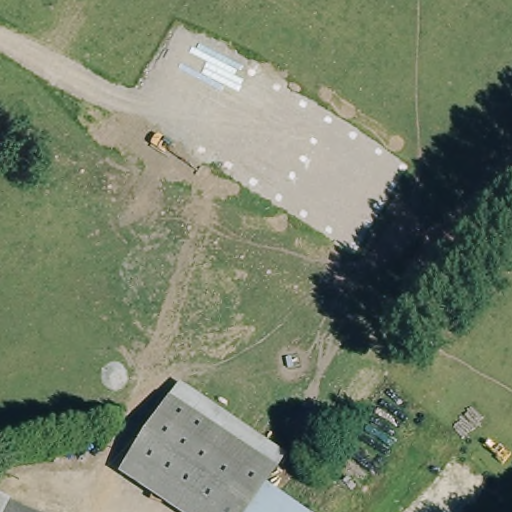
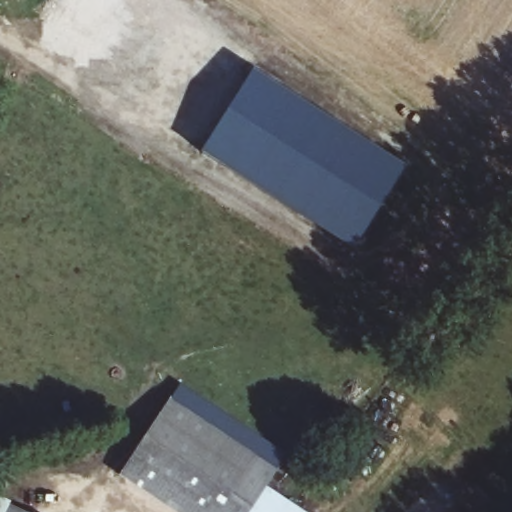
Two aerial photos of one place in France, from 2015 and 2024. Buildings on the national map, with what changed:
new [(250,70),(327,119),(276,199),(200,151),(250,70)]
new [(327,119),(403,167),(352,247),(276,199),(327,119)]
unchanged [(180,512),(121,469),(185,380),(289,455),(245,512),(180,512)]
unchanged [(252,512),(272,483),(315,512),(252,512)]
unchanged [(20,490),(65,512),(9,512),(15,500),(20,490)]
unchanged [(15,500),(9,512),(0,512),(0,493),(15,500)]

